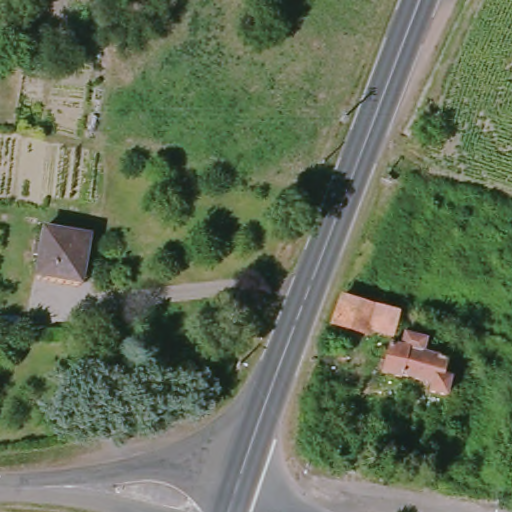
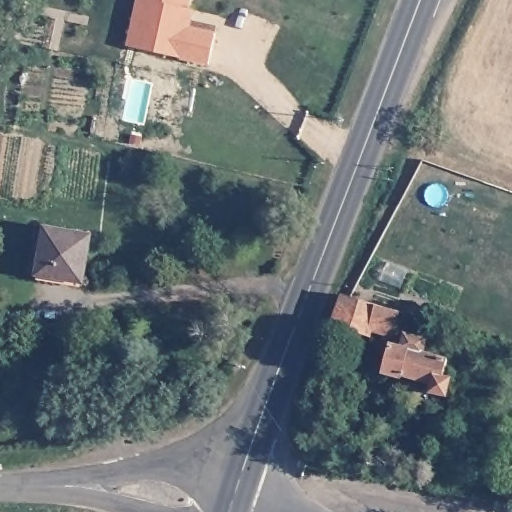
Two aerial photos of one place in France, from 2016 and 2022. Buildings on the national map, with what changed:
new [(127,45),(137,0),(191,0),(190,6),(195,7),(190,27),(216,32),(209,65),(127,45)]
unchanged [(84,236),(76,281),(34,273),(41,227),(84,236)]
unchanged [(385,336),(364,330),(363,335),(326,323),(337,297),(343,298),(370,307),(391,312),(385,336)]
unchanged [(400,349),(404,336),(424,342),(420,355),(445,362),(442,375),(449,377),(444,396),(430,392),(432,386),(400,376),(399,380),(380,373),(387,346),(400,349)]
unchanged [(340,466),(338,477),(320,472),(324,460),(340,466)]

